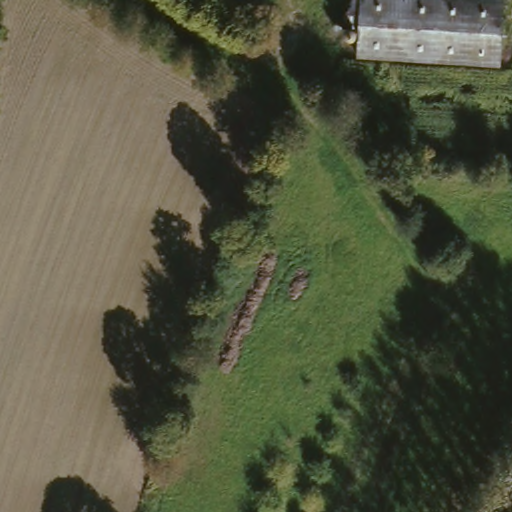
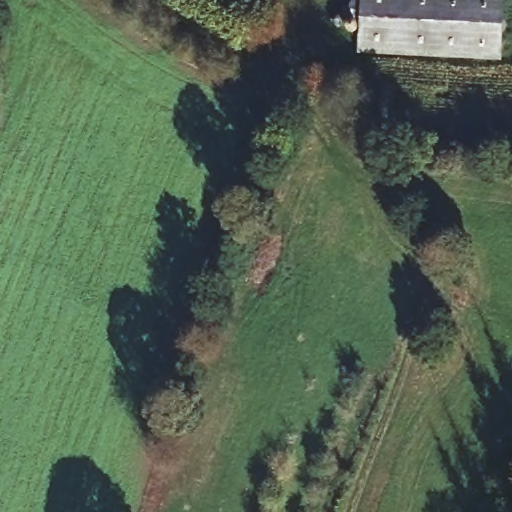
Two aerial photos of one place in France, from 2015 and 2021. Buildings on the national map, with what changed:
unchanged [(358,59),(359,1),(359,0),(501,0),(501,62),(358,59)]

